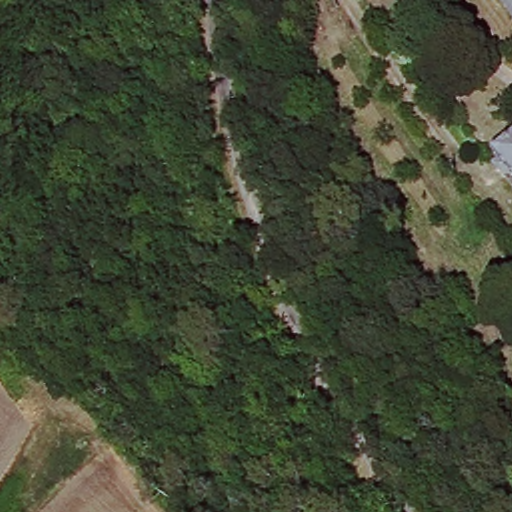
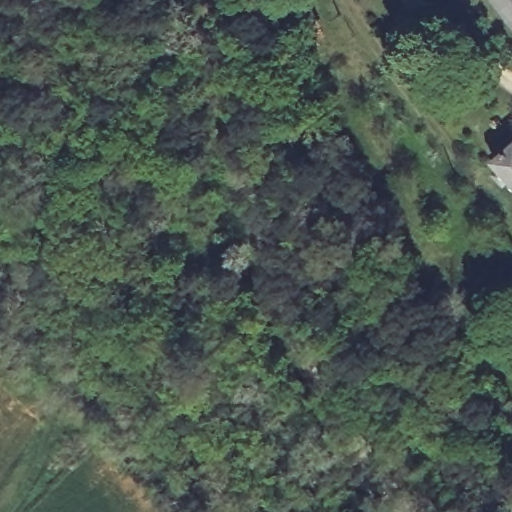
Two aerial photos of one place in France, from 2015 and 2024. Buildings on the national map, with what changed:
unchanged [(512,44),(486,0),(512,0),(512,44)]
unchanged [(512,148),(512,179),(497,161),(512,148)]

